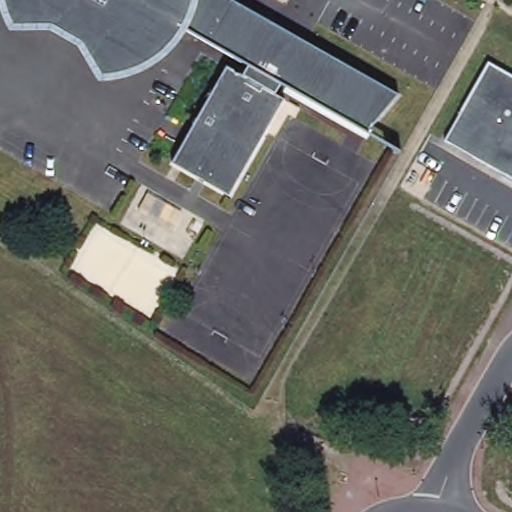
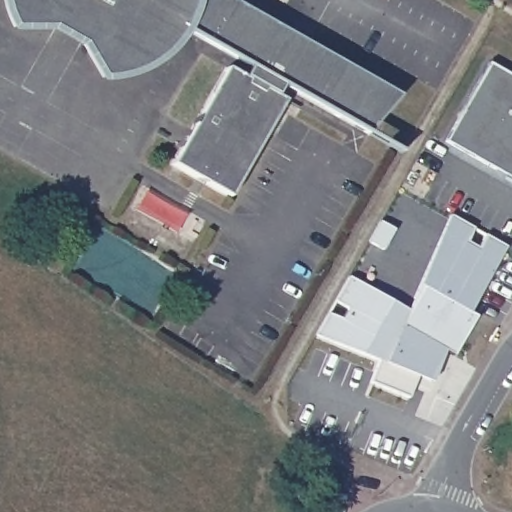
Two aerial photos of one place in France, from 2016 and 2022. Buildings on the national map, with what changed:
unchanged [(355,75),(327,110),(282,85),(277,94),(286,99),(231,195),(174,162),(227,66),(244,75),(249,66),(182,27),(173,41),(162,52),(147,62),(132,70),(117,74),(102,75),(84,45),(54,26),(15,26),(7,6),(5,0),(225,0),(356,75),(355,75)]
unchanged [(512,185),(445,144),(487,66),(512,79),(512,185)]
unchanged [(366,80),(368,75),(401,95),(376,125),(373,124),(368,133),(327,110),(355,75),(356,75),(366,80)]
new [(408,397),(370,381),(378,360),(317,335),(330,312),(342,319),(349,308),(336,300),(350,277),(407,310),(451,215),(475,228),(468,240),(478,246),(486,234),(507,246),(470,312),(477,316),(453,355),(445,349),(432,380),(417,375),(408,397)]

